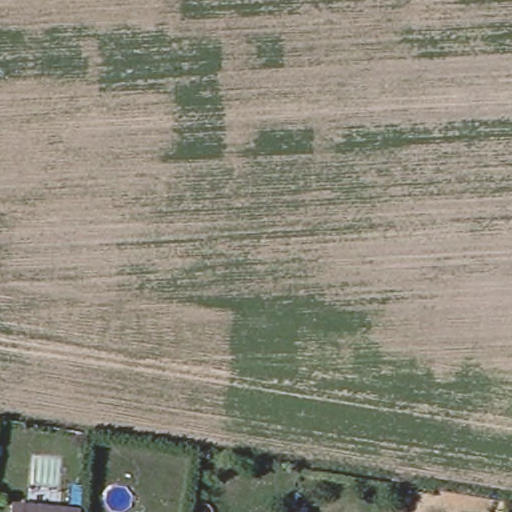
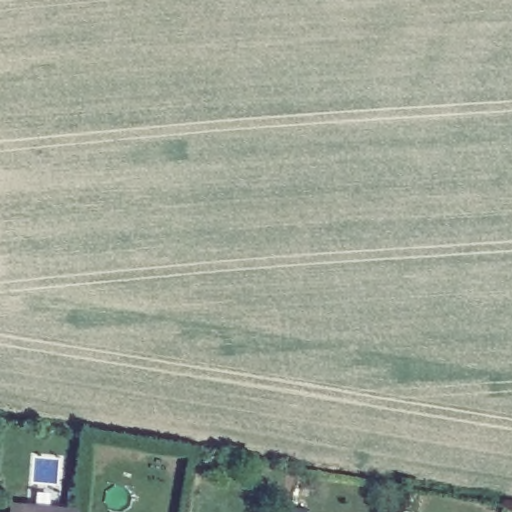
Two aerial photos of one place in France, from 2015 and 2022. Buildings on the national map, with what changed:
unchanged [(82,512),(12,512),(13,505),(40,507),(50,508),(82,511),(82,512)]

